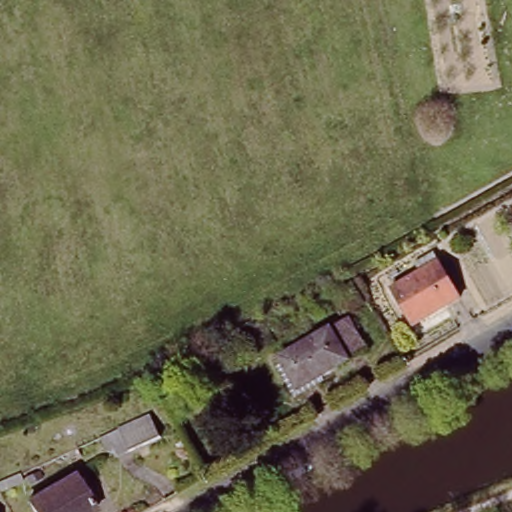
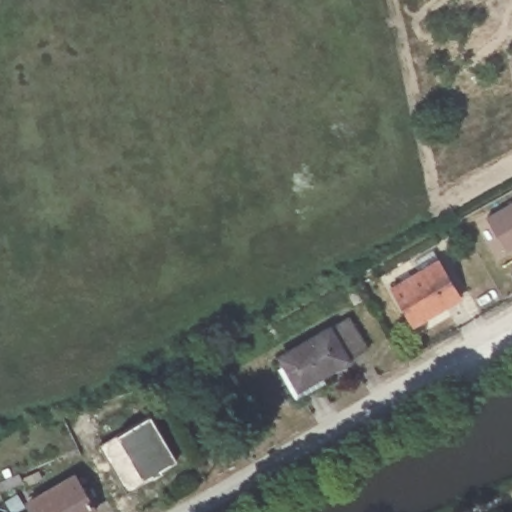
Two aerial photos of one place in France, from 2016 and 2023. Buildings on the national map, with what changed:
new [(487,217),(512,203),(512,248),(506,252),(487,217)]
unchanged [(460,300),(414,327),(392,291),(419,276),(414,266),(433,256),(460,300)]
unchanged [(280,352),(343,317),(362,348),(298,384),(280,352)]
unchanged [(160,435),(129,449),(117,455),(114,447),(106,451),(100,436),(151,413),(160,435)]
unchanged [(89,512),(34,512),(29,503),(72,476),(93,510),(89,512)]

